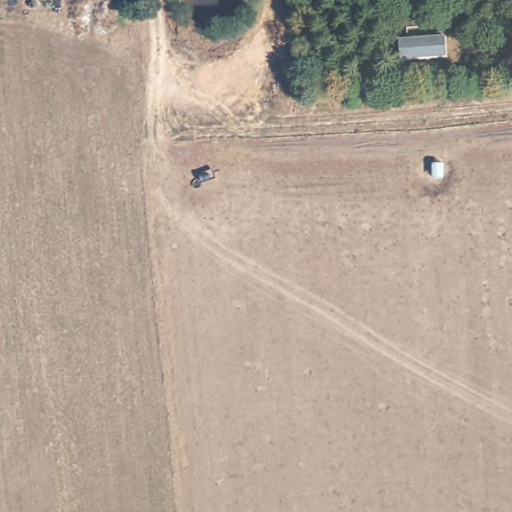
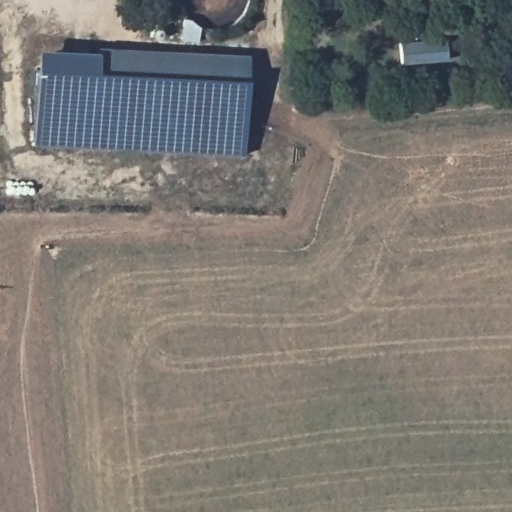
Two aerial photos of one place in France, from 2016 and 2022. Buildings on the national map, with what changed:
new [(38,48),(97,51),(98,46),(249,55),(244,154),(33,143),(38,48)]

